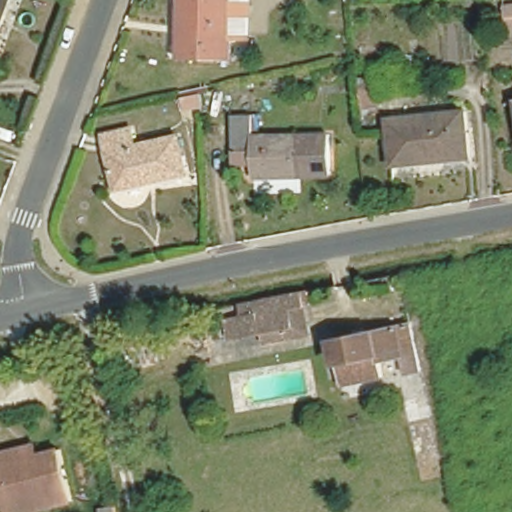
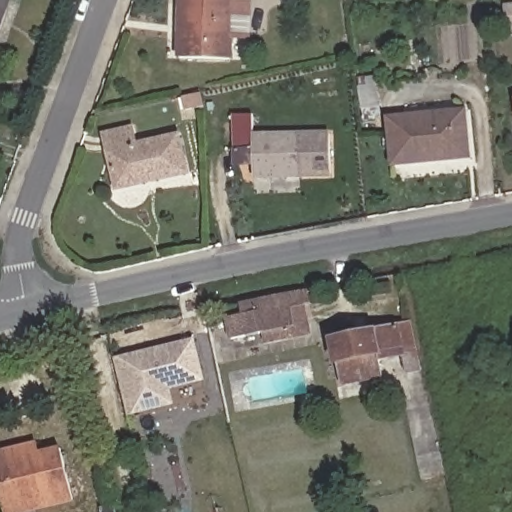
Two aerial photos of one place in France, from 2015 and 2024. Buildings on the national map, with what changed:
unchanged [(0,0),(5,0),(0,14),(0,0)]
unchanged [(182,51),(182,0),(230,0),(230,52),(182,51)]
unchanged [(184,95),(192,94),(194,106),(175,110),(173,97),(184,95)]
unchanged [(461,107),(467,152),(393,162),(387,117),(461,107)]
unchanged [(233,154),(229,120),(250,117),(253,136),(330,126),(335,170),(258,179),(254,152),(233,154)]
unchanged [(103,128),(135,122),(138,137),(178,130),(184,171),(113,184),(103,128)]
unchanged [(262,337),(259,325),(227,331),(223,311),(239,307),(236,297),(240,296),(252,294),(298,285),(301,298),(307,329),(262,337)]
unchanged [(411,352),(411,353),(413,361),(399,363),(398,356),(396,346),(381,349),(383,359),(384,365),(333,376),(330,370),(329,365),(320,333),(403,315),(409,341),(411,352)]
unchanged [(107,341),(153,333),(155,351),(111,358),(107,341)]
new [(195,338),(206,381),(173,390),(176,406),(129,417),(115,359),(195,338)]
unchanged [(0,480),(0,447),(25,443),(43,439),(45,449),(67,445),(79,496),(48,503),(12,512),(8,512),(6,505),(0,480)]

